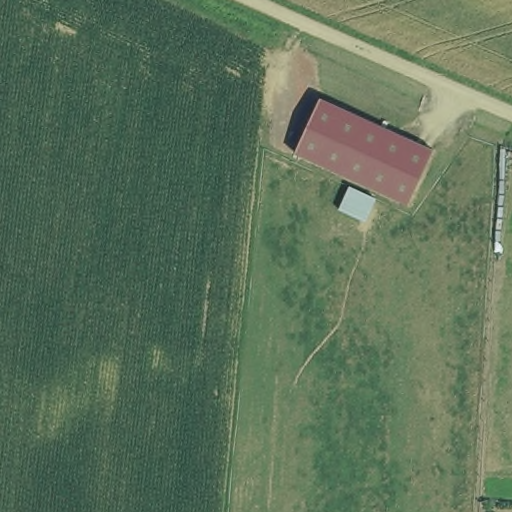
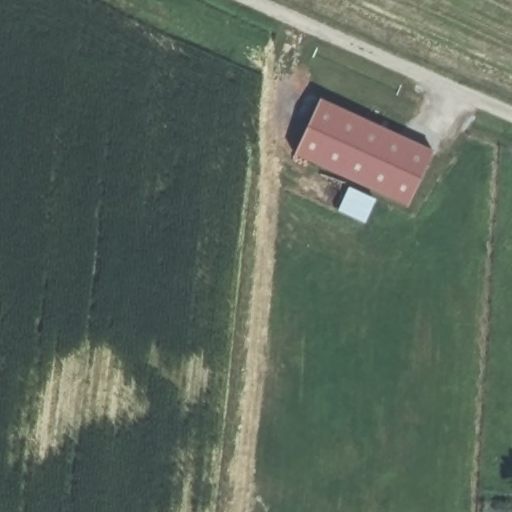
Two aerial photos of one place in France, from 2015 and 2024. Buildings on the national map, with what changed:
unchanged [(435,150),(411,205),(296,153),(321,97),(435,150)]

